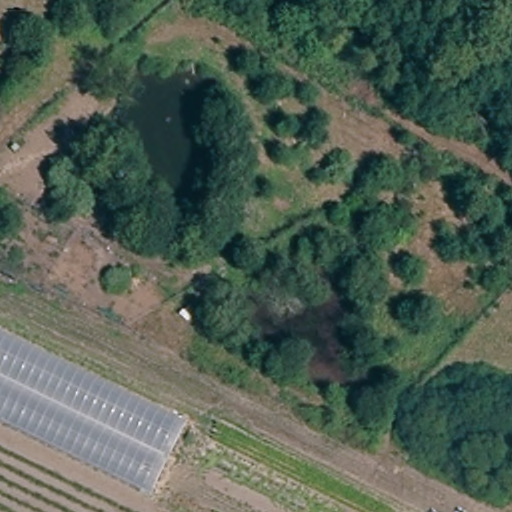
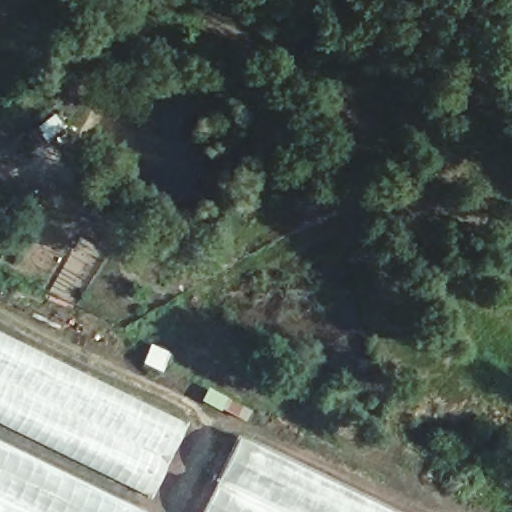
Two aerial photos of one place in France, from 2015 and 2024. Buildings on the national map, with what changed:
unchanged [(151,494),(0,421),(0,331),(185,421),(151,494)]
new [(394,512),(200,512),(238,435),(394,512)]
new [(0,442),(142,512),(0,512),(0,442)]

